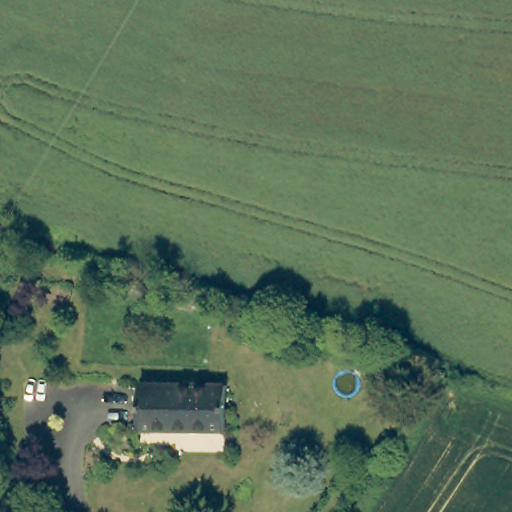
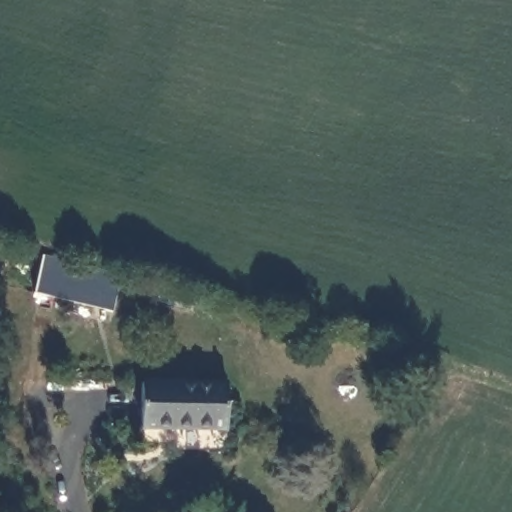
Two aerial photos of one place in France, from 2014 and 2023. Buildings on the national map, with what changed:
new [(120,276),(111,312),(34,294),(42,256),(120,276)]
unchanged [(225,389),(224,433),(141,431),(143,388),(225,389)]

